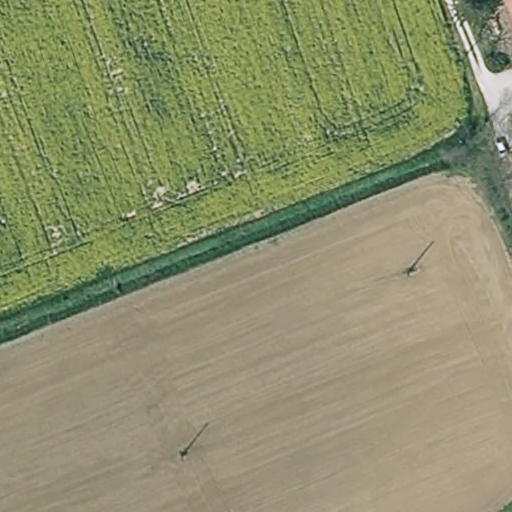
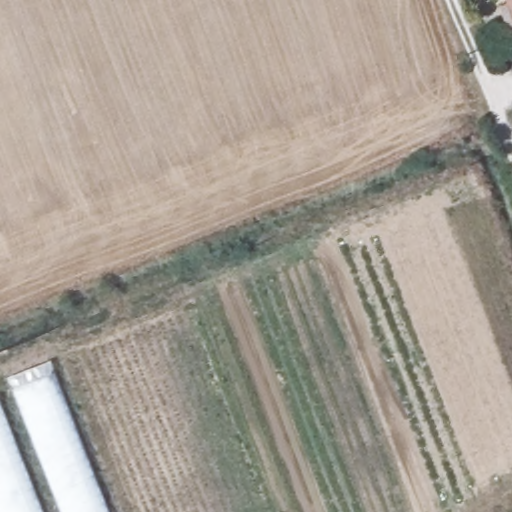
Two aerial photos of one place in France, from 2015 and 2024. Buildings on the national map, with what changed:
unchanged [(509,0),(512,0),(512,10),(509,0)]
new [(0,512),(0,393),(53,372),(108,512),(0,512)]

